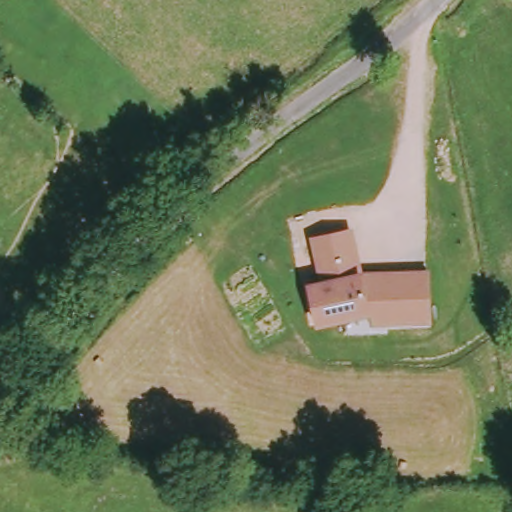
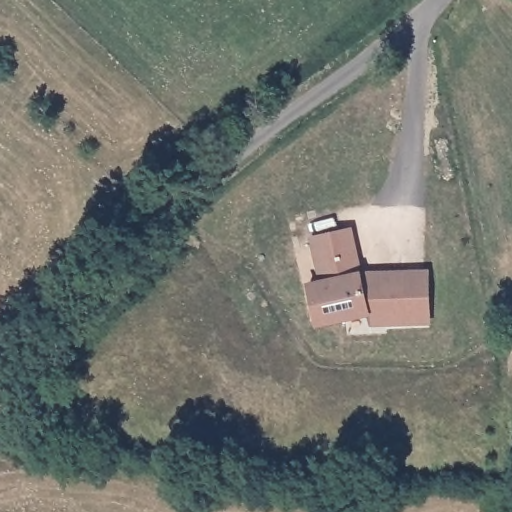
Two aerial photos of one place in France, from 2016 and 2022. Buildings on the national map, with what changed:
unchanged [(373,330),(372,318),(319,330),(309,286),(321,284),(312,240),(355,230),(365,275),(432,275),(434,328),(373,330)]

